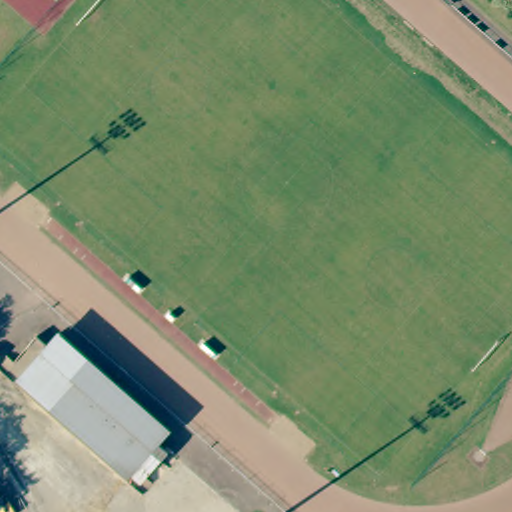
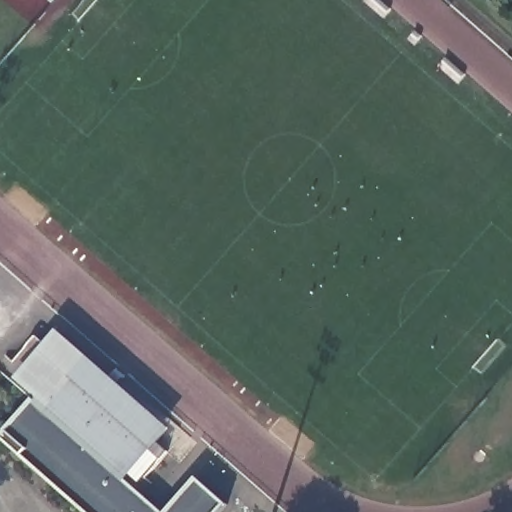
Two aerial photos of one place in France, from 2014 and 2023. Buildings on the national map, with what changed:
unchanged [(12,352),(19,359),(42,334),(53,345),(65,331),(173,428),(161,441),(172,451),(150,476),(157,483),(147,495),(1,364),(12,352)]
new [(147,495),(165,512),(84,512),(2,439),(37,397),(147,495)]
new [(197,481),(226,508),(222,512),(170,512),(197,481)]

